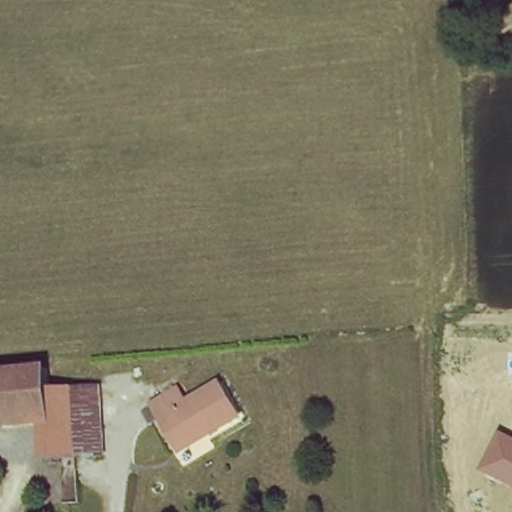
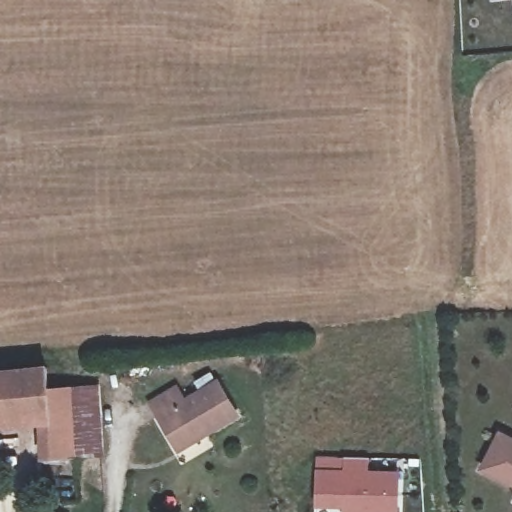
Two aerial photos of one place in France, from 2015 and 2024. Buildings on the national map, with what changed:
unchanged [(0,385),(0,375),(49,371),(51,392),(102,389),(106,460),(55,464),(51,412),(2,416),(0,385)]
unchanged [(2,416),(0,416),(0,385),(2,416)]
unchanged [(181,392),(188,405),(220,387),(240,420),(210,438),(206,433),(180,450),(155,408),(181,392)]
unchanged [(512,436),(512,485),(482,470),(500,430),(512,436)]
new [(342,508),(314,506),(317,457),(342,458),(368,460),(368,471),(398,472),(396,512),(342,512),(342,508)]

